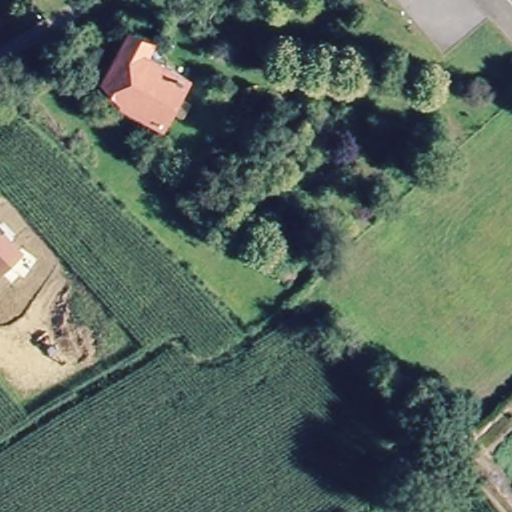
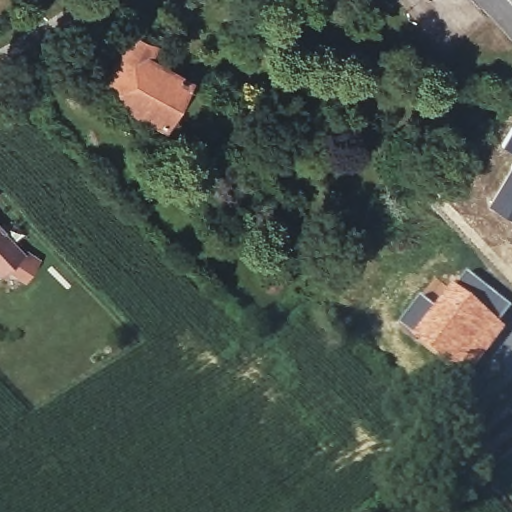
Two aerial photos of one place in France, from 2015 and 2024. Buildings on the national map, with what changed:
unchanged [(158,43),(152,59),(195,79),(171,124),(129,104),(106,83),(135,30),(158,43)]
new [(501,145),(512,127),(512,152),(501,145)]
new [(512,161),(512,217),(488,202),(512,161)]
unchanged [(5,231),(25,253),(0,275),(0,223),(6,229),(5,231)]
new [(466,273),(512,309),(500,324),(452,287),(466,273)]
new [(420,297),(435,307),(452,287),(500,324),(506,329),(464,382),(430,354),(397,326),(420,297)]

